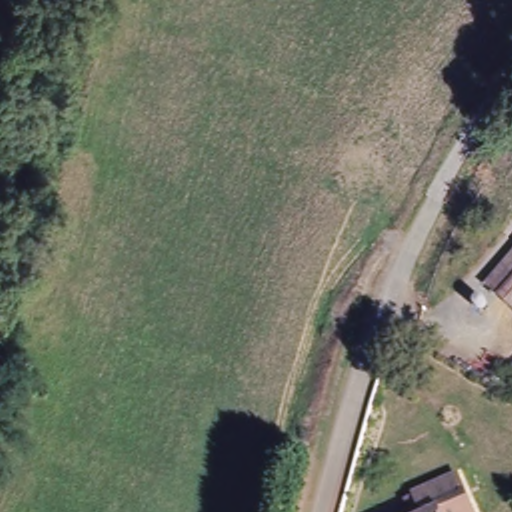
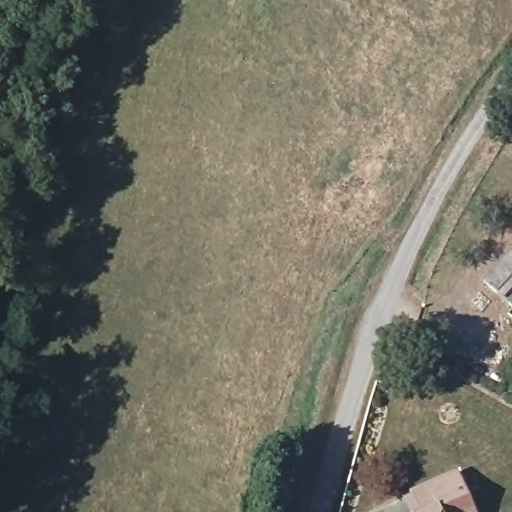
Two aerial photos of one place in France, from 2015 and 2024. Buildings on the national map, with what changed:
unchanged [(512,253),(512,309),(484,284),(512,253)]
unchanged [(414,495),(456,472),(457,474),(478,510),(479,512),(422,512),(423,512),(414,495)]

